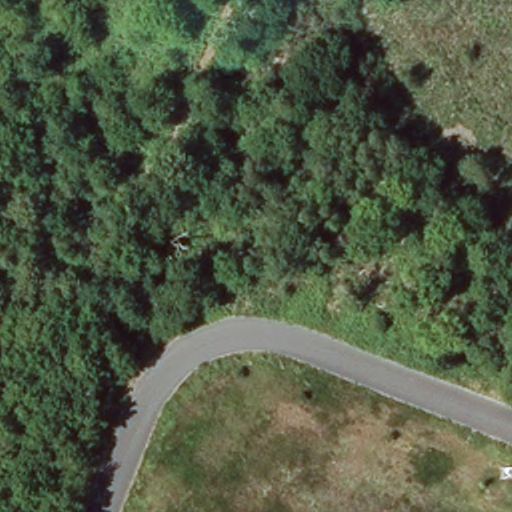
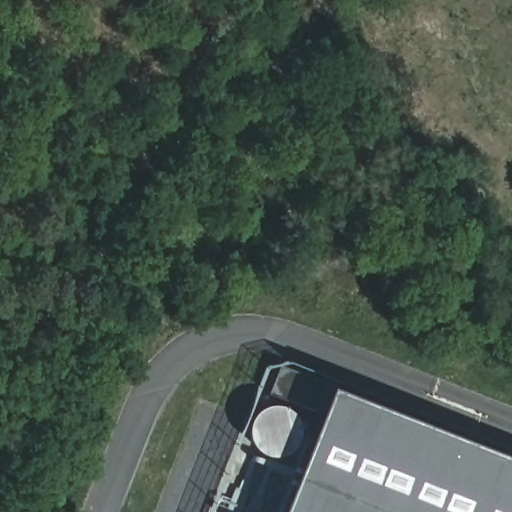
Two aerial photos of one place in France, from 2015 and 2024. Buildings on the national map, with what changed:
new [(269,393),(281,364),(333,386),(322,413),(269,393)]
new [(322,413),(333,386),(512,456),(512,512),(283,512),(322,413)]

